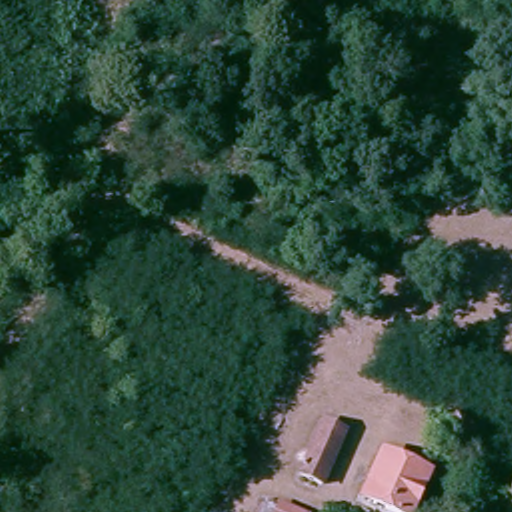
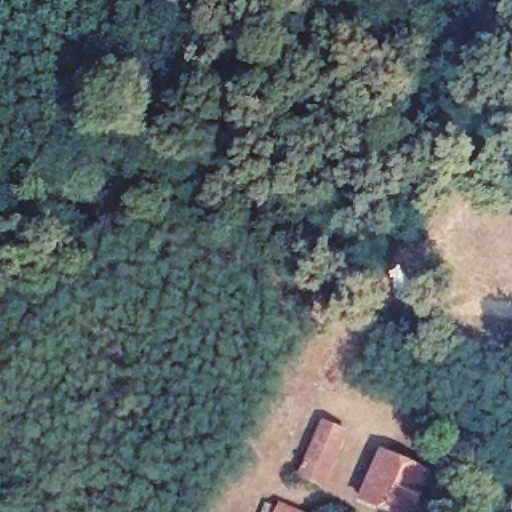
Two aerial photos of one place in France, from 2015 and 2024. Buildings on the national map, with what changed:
unchanged [(353,427),(317,492),(295,481),(331,416),(353,427)]
unchanged [(436,467),(412,512),(380,512),(359,502),(389,443),(436,467)]
unchanged [(306,512),(267,512),(280,494),(306,512)]

